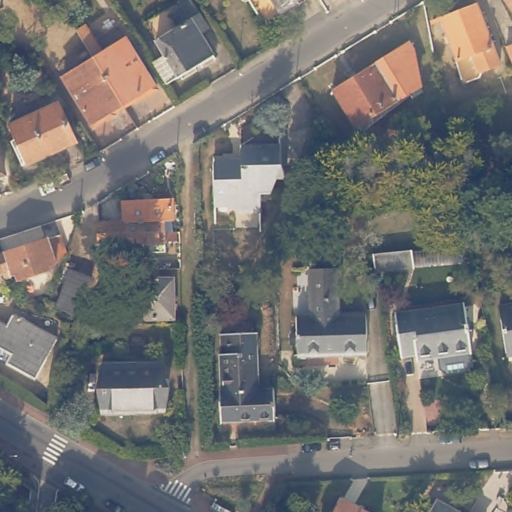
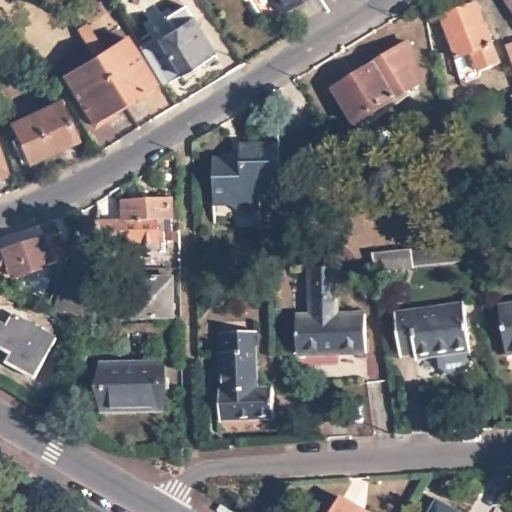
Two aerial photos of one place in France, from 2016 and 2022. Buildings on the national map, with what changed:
unchanged [(258,23),(244,0),(296,0),(258,23)]
unchanged [(512,14),(503,0),(512,0),(512,14)]
unchanged [(147,66),(156,61),(154,58),(157,56),(147,40),(168,27),(161,14),(182,2),(197,27),(190,32),(205,57),(191,66),(190,63),(169,76),(157,82),(147,66)]
unchanged [(495,63),(473,71),(466,54),(454,59),(439,17),(473,4),(495,63)]
unchanged [(115,21),(107,25),(102,15),(110,11),(115,21)]
unchanged [(94,57),(77,31),(87,25),(104,51),(124,37),(156,87),(137,100),(134,95),(122,102),(94,57)]
unchanged [(512,49),(512,61),(508,50),(512,49)]
unchanged [(112,108),(114,113),(94,125),(63,77),(94,57),(122,102),(112,108)]
unchanged [(404,91),(353,123),(331,89),(382,57),(404,91)]
unchanged [(76,141),(27,162),(10,123),(59,101),(76,141)]
unchanged [(7,172),(0,175),(0,151),(7,172)]
unchanged [(235,217),(234,217),(223,203),(214,203),(212,169),(222,169),(223,165),(225,162),(227,161),(230,161),(233,162),(233,165),(242,165),(241,152),(278,151),(279,167),(275,180),(267,196),(258,196),(259,207),(259,216),(235,217)]
unchanged [(99,243),(98,211),(123,210),(122,190),(172,189),(173,221),(166,221),(166,230),(127,231),(127,242),(99,243)]
unchanged [(3,269),(0,260),(0,252),(55,233),(62,254),(50,263),(44,265),(44,267),(12,278),(10,274),(5,275),(3,269)]
unchanged [(361,315),(363,354),(294,356),(293,320),(293,317),(309,316),(308,289),(307,268),(313,267),(316,239),(335,240),(333,266),(334,266),(334,286),(335,316),(361,315)]
unchanged [(416,265),(378,270),(377,253),(415,250),(416,265)]
unchanged [(3,269),(5,275),(0,277),(0,275),(0,260),(3,269)]
unchanged [(72,270),(93,278),(78,313),(58,306),(72,270)]
unchanged [(380,288),(379,282),(379,276),(405,273),(405,280),(406,286),(380,288)]
unchanged [(167,278),(168,317),(135,318),(134,279),(167,278)]
unchanged [(467,348),(466,348),(468,367),(416,374),(413,355),(412,355),(412,350),(397,352),(392,310),(462,302),(467,348)]
unchanged [(512,351),(505,352),(496,304),(512,302),(512,351)]
unchanged [(57,342),(35,383),(7,368),(11,358),(0,352),(0,329),(6,332),(13,318),(57,342)]
unchanged [(217,413),(216,392),(219,392),(218,357),(220,357),(220,337),(254,336),(255,392),(271,392),(272,422),(232,423),(217,424),(217,413)]
unchanged [(134,369),(162,369),(164,411),(139,412),(139,408),(104,407),(103,366),(134,365),(134,369)]
unchanged [(367,512),(333,512),(341,497),(367,512)]
unchanged [(434,512),(438,506),(448,512),(434,512)]
unchanged [(459,512),(455,512),(456,510),(459,512)]

